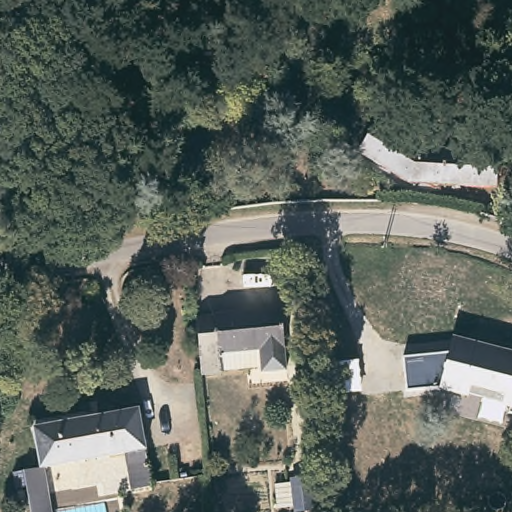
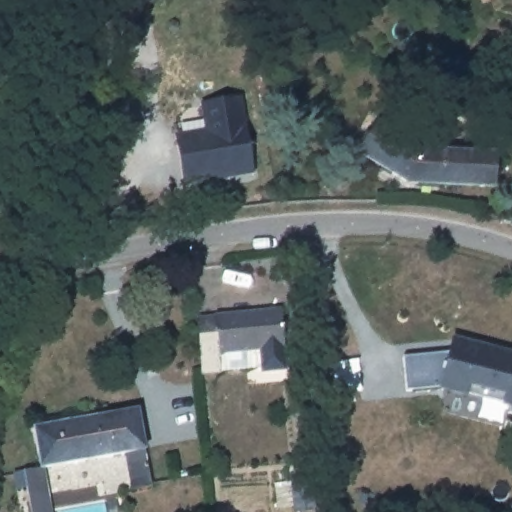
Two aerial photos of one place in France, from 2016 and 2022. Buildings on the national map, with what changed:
new [(242,95),(255,175),(182,186),(175,134),(205,130),(201,104),(242,95)]
unchanged [(412,191),(360,160),(377,130),(419,156),(424,156),(423,191),(412,191)]
unchanged [(501,158),(500,195),(423,191),(424,156),(501,158)]
unchanged [(207,380),(201,322),(217,321),(220,317),(283,312),(288,356),(287,370),(265,373),(225,377),(207,380)]
unchanged [(503,406),(504,395),(469,388),(467,396),(438,388),(410,393),(406,359),(450,353),(455,337),(512,353),(512,410),(503,406)]
unchanged [(142,491),(138,456),(92,464),(85,422),(152,410),(160,453),(164,487),(142,491)]
unchanged [(85,422),(92,464),(60,469),(52,428),(85,422)]
unchanged [(47,498),(42,472),(60,469),(64,495),(67,512),(49,512),(47,498)]

